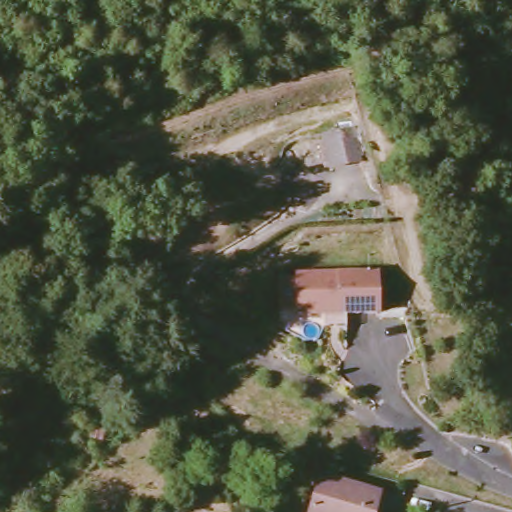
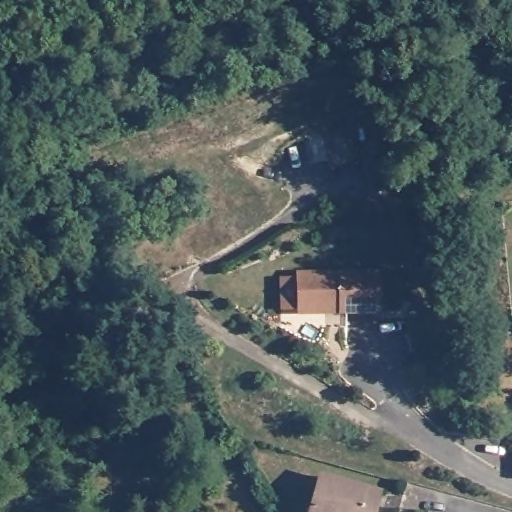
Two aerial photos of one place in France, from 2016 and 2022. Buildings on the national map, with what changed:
unchanged [(374,318),(295,317),(295,276),(373,276),(374,318)]
unchanged [(318,475),(383,491),(377,512),(307,512),(318,475)]

